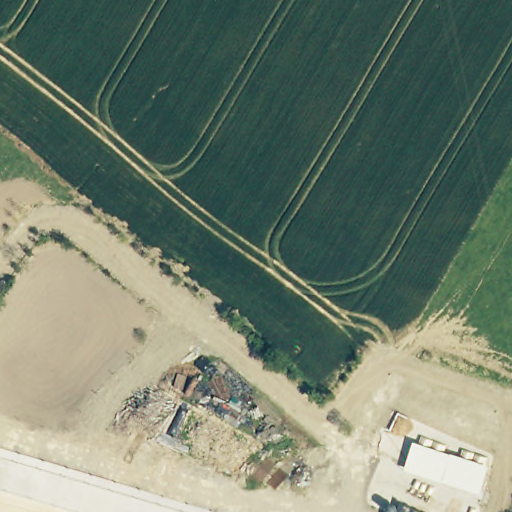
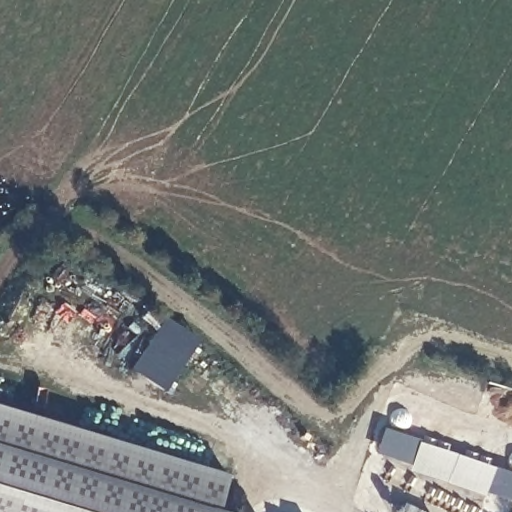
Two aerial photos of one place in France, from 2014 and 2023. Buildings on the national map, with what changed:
new [(160,388),(128,368),(162,317),(194,339),(160,388)]
new [(94,472),(104,436),(222,473),(214,508),(226,512),(0,512),(0,445),(94,472)]
new [(480,495),(405,470),(414,441),(490,467),(480,495)]

